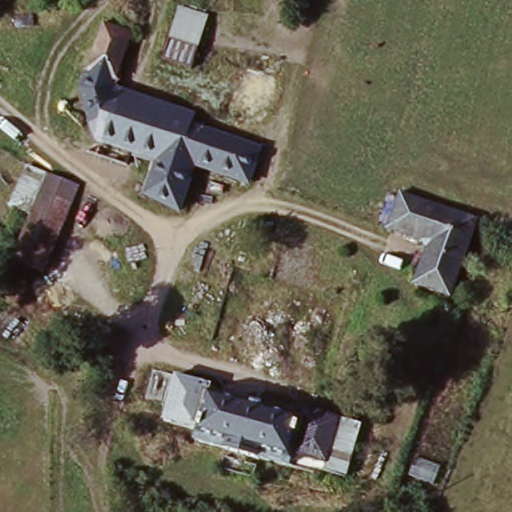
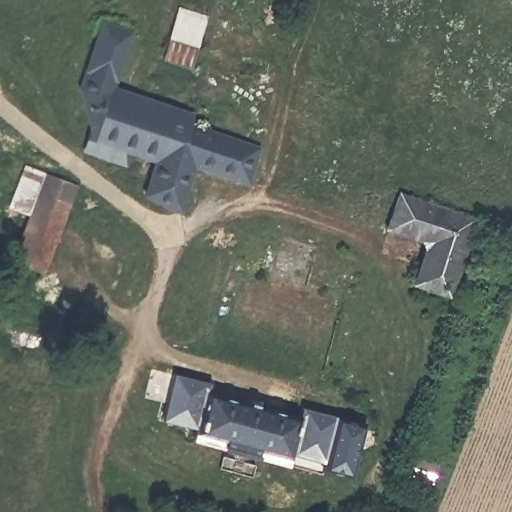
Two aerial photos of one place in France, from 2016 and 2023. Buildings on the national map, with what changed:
unchanged [(182,11),(210,19),(196,70),(167,62),(182,11)]
unchanged [(96,145),(82,90),(101,30),(135,39),(115,100),(175,119),(165,154),(160,152),(157,164),(96,145)]
unchanged [(157,164),(160,152),(165,154),(175,119),(260,148),(250,180),(195,165),(180,209),(147,200),(157,164)]
unchanged [(59,267),(0,249),(0,232),(20,167),(77,187),(59,267)]
unchanged [(404,197),(480,221),(456,297),(423,287),(433,253),(424,241),(393,232),(404,197)]
unchanged [(181,373),(214,382),(211,392),(301,418),(305,410),(360,427),(350,457),(330,451),(323,476),(196,442),(200,432),(167,421),(181,373)]

